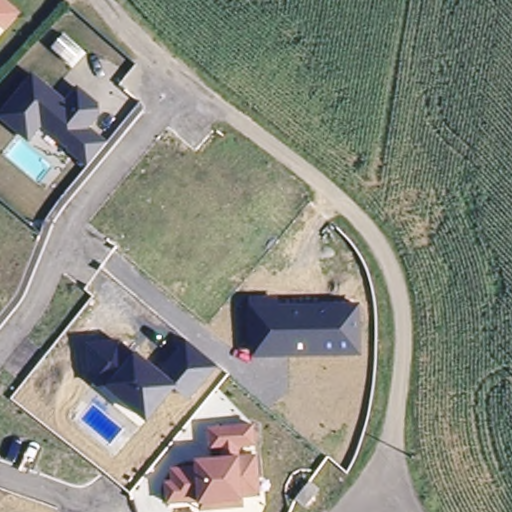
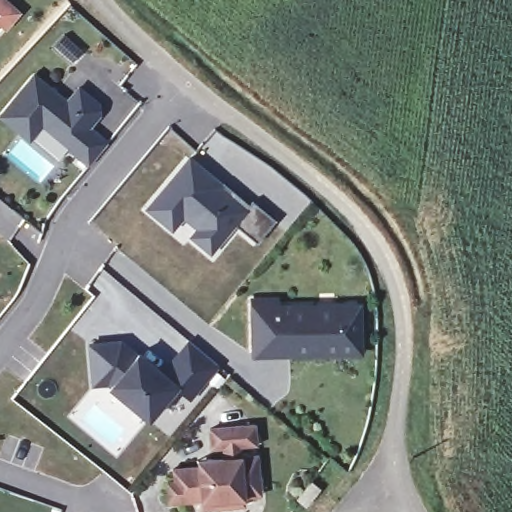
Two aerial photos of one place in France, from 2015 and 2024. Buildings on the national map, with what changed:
unchanged [(7,29),(0,23),(0,0),(7,0),(21,13),(7,29)]
unchanged [(78,85),(99,103),(100,116),(89,128),(107,143),(87,166),(42,128),(29,143),(0,118),(0,111),(32,73),(65,99),(78,85)]
new [(209,252),(190,236),(197,228),(182,215),(171,228),(146,208),(188,158),(220,184),(218,187),(225,194),(229,189),(247,204),(250,200),(274,220),(255,243),(239,229),(232,224),(209,252)]
unchanged [(250,305),(361,304),(362,356),(250,358),(250,305)]
unchanged [(118,340),(134,354),(136,351),(162,371),(185,340),(218,367),(190,401),(174,389),(147,423),(106,387),(89,388),(86,343),(118,340)]
unchanged [(255,446),(239,447),(240,456),(256,455),(259,496),(243,497),(244,508),(199,511),(198,503),(166,505),(165,482),(171,481),(170,466),(196,465),(195,459),(224,457),(223,448),(209,449),(207,428),(254,424),(255,446)]

